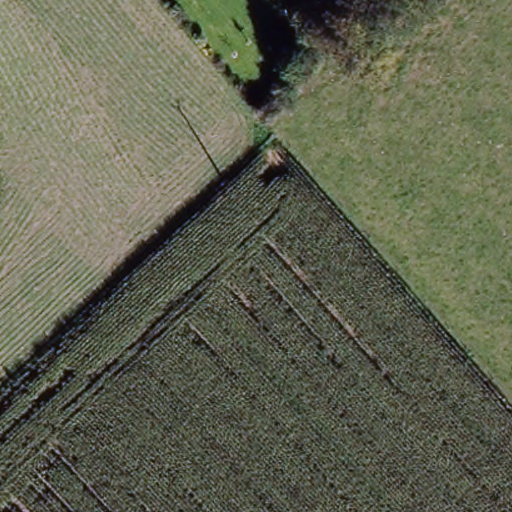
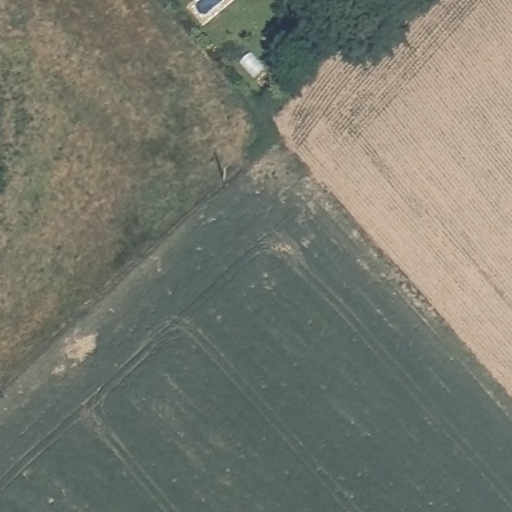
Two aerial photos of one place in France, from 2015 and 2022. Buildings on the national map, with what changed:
[]

